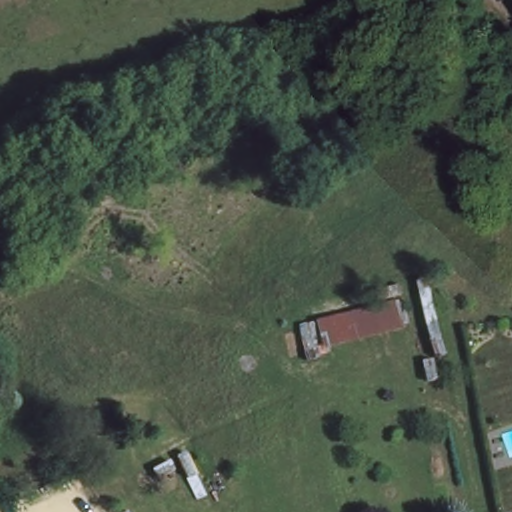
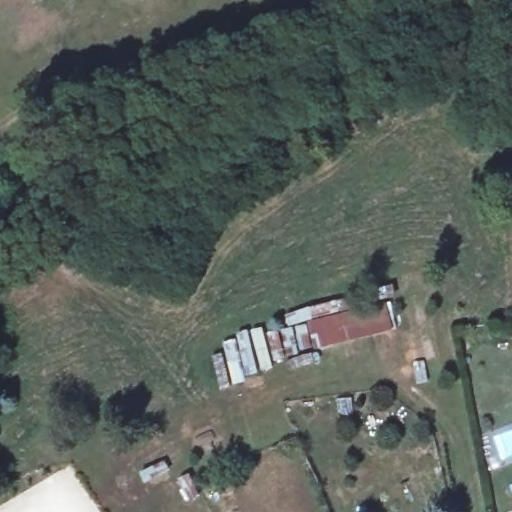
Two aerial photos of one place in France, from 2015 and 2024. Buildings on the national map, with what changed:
unchanged [(314,353),(316,360),(302,364),(292,327),(391,301),(399,330),(314,353)]

